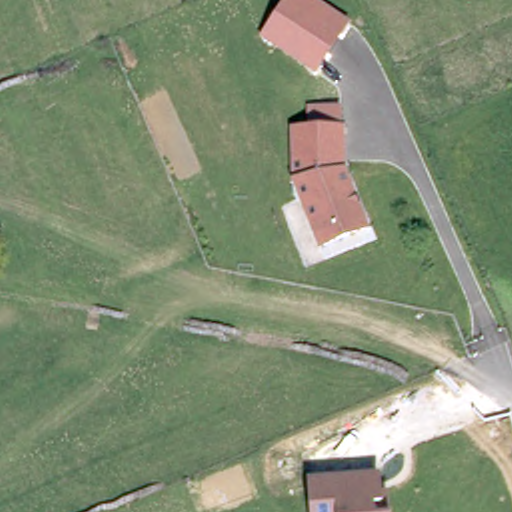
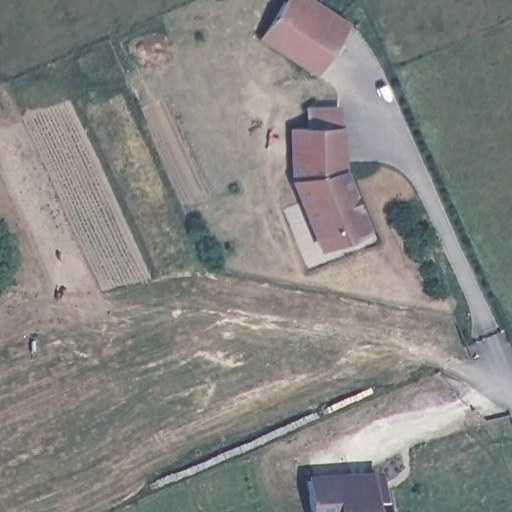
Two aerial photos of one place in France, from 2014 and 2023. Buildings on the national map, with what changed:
unchanged [(283,0),(312,0),(346,23),(313,72),(257,35),(283,0)]
unchanged [(338,131),(339,175),(361,233),(315,250),(290,184),(288,132),(338,131)]
unchanged [(376,476),(377,495),(383,495),(385,512),(309,512),(307,481),(376,476)]

